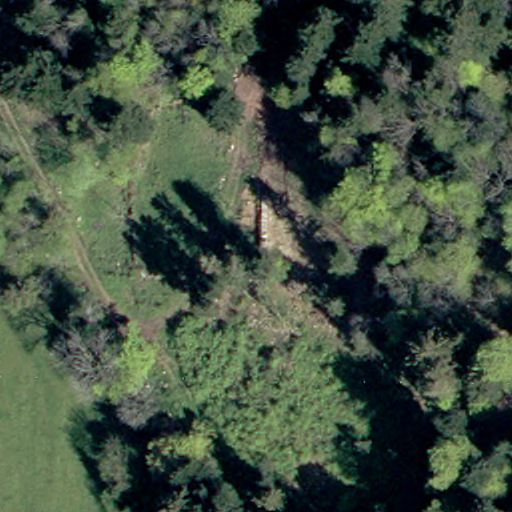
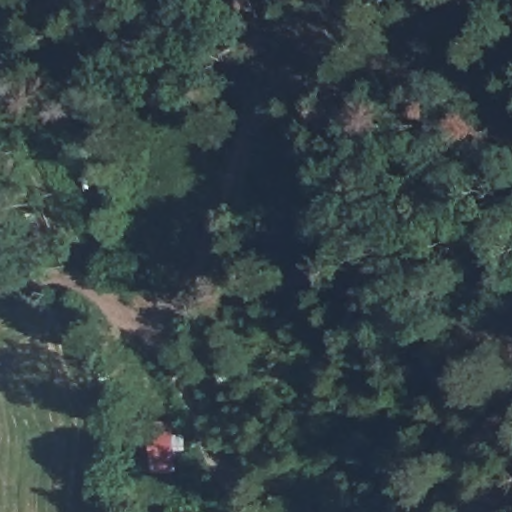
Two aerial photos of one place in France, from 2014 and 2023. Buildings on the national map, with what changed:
unchanged [(145,430),(167,429),(170,469),(170,480),(147,480),(145,430)]

